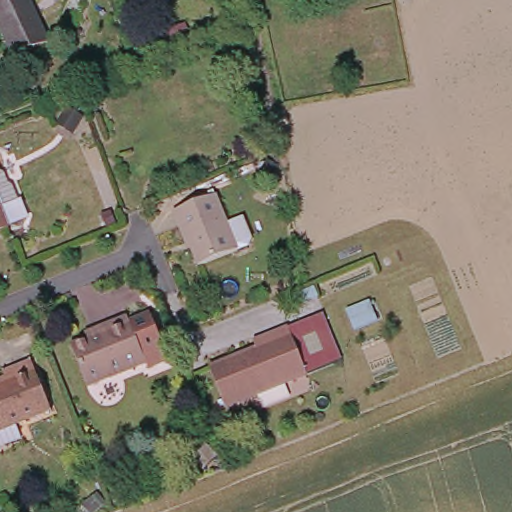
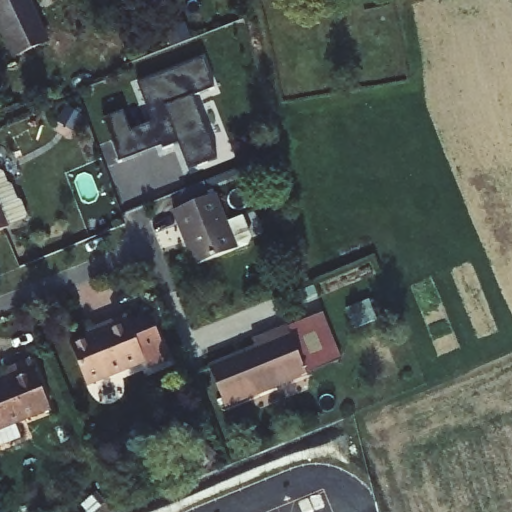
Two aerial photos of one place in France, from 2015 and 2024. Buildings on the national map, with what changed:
unchanged [(19,68),(0,26),(0,0),(27,0),(51,53),(19,68)]
new [(135,86),(200,60),(212,90),(191,98),(216,161),(187,172),(177,146),(161,152),(135,86)]
new [(121,112),(142,104),(160,147),(138,156),(121,112)]
new [(138,156),(118,164),(101,120),(121,112),(138,156)]
unchanged [(16,194),(20,193),(26,208),(26,215),(25,220),(15,223),(15,220),(6,224),(7,227),(0,230),(0,171),(2,172),(5,181),(11,183),(16,194)]
unchanged [(186,241),(183,242),(172,215),(214,198),(225,227),(240,220),(248,241),(246,248),(247,250),(236,254),(235,251),(196,267),(186,241)]
unchanged [(122,324),(142,315),(161,362),(141,371),(138,365),(80,389),(63,348),(80,341),(77,336),(95,329),(120,319),(122,324)]
unchanged [(277,334),(311,320),(325,369),(295,381),(277,334)]
unchanged [(213,414),(197,374),(244,355),(241,349),(277,334),(295,381),(213,414)]
unchanged [(3,378),(1,375),(29,363),(48,412),(0,431),(0,379),(3,378)]

